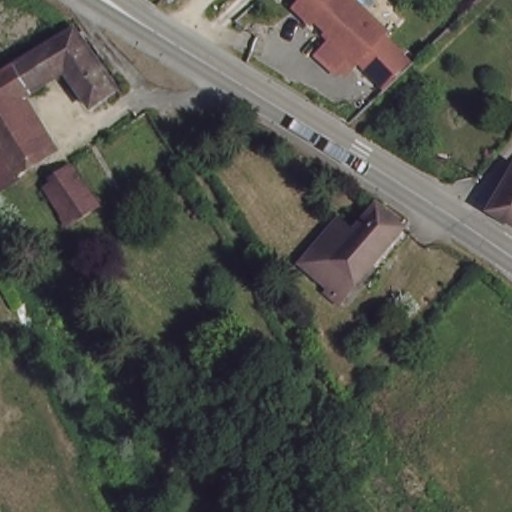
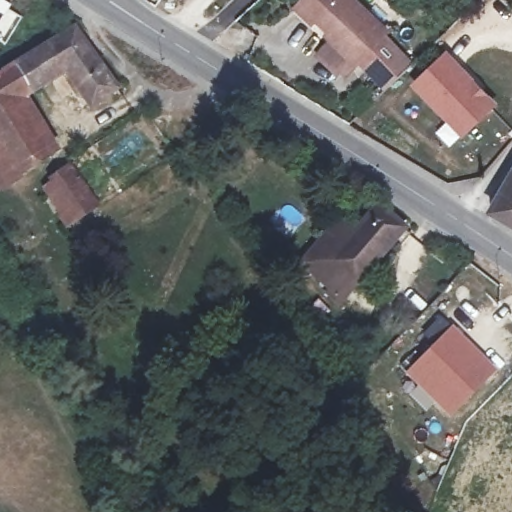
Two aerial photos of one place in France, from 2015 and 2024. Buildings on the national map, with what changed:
unchanged [(382,91),(358,67),(345,83),(313,56),(327,41),(290,11),(300,0),(354,0),(389,32),(385,36),(413,62),(382,91)]
unchanged [(18,176),(0,149),(0,75),(73,30),(115,94),(90,111),(67,76),(28,101),(59,150),(47,158),(18,176)]
new [(462,137),(410,85),(446,49),(497,104),(462,137)]
unchanged [(0,187),(0,149),(18,176),(0,187)]
unchanged [(70,229),(44,187),(75,169),(101,209),(70,229)]
demolished [(493,195),(505,177),(512,170),(512,207),(493,195)]
new [(512,173),(512,228),(485,212),(512,173)]
unchanged [(0,224),(0,187),(16,213),(0,224)]
unchanged [(317,250),(341,220),(360,235),(382,207),(407,226),(360,285),(317,250)]
unchanged [(360,285),(345,305),(302,269),(317,250),(360,285)]
new [(430,345),(420,335),(440,314),(499,370),(450,418),(433,403),(425,411),(407,392),(415,385),(403,373),(430,345)]
unchanged [(170,497),(189,483),(201,497),(182,512),(162,512),(157,507),(170,497)]

